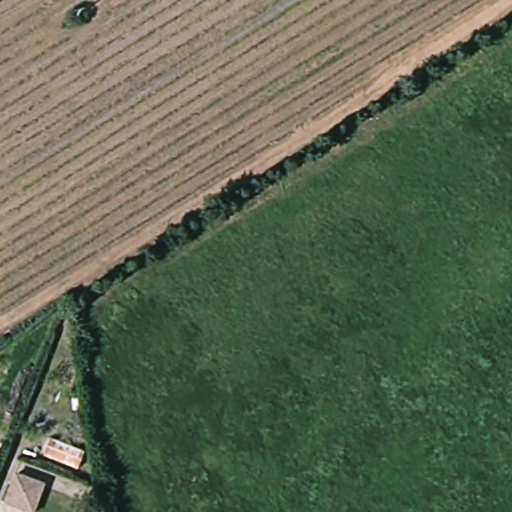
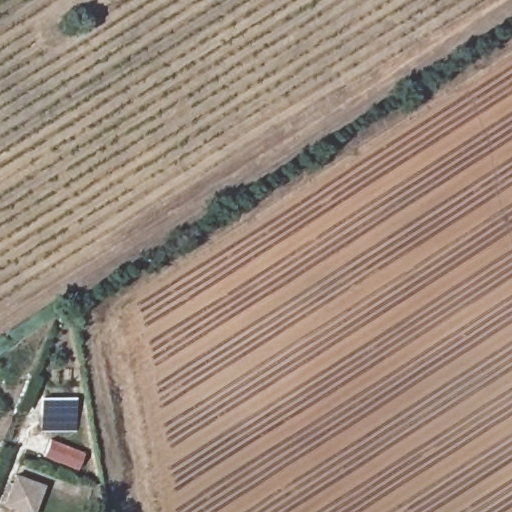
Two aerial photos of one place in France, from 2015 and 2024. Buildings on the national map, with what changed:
unchanged [(84,453),(77,471),(44,458),(50,440),(84,453)]
unchanged [(45,485),(35,512),(20,512),(3,507),(14,474),(45,485)]

